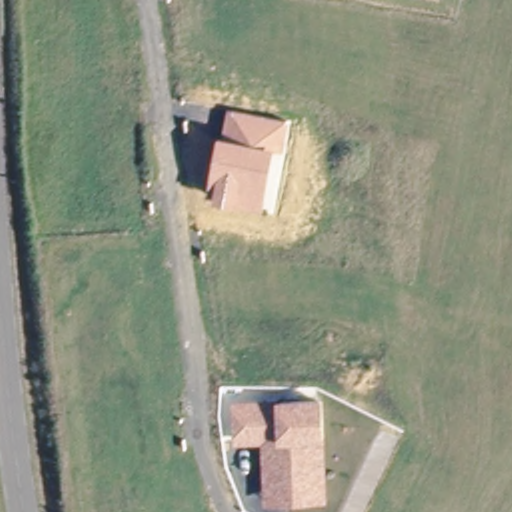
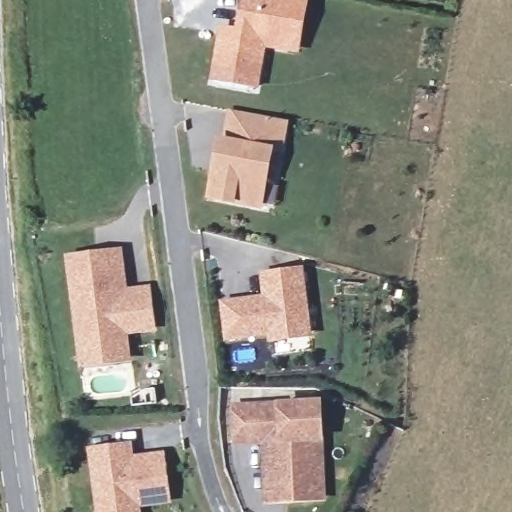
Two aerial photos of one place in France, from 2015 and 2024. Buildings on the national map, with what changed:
new [(219,23),(235,26),(240,0),(310,0),(300,53),(267,48),(259,88),(209,79),(219,23)]
unchanged [(288,118),(265,212),(205,202),(226,111),(288,118)]
new [(123,248),(127,287),(153,283),(157,331),(128,335),(131,361),(79,368),(64,255),(123,248)]
new [(262,294),(260,270),(303,265),(313,337),(269,343),(268,336),(224,341),(220,300),(262,294)]
unchanged [(325,402),(328,502),(262,503),(259,446),(233,445),(231,405),(325,402)]
new [(134,456),(164,451),(171,506),(141,509),(141,512),(96,512),(87,449),(132,441),(134,456)]

